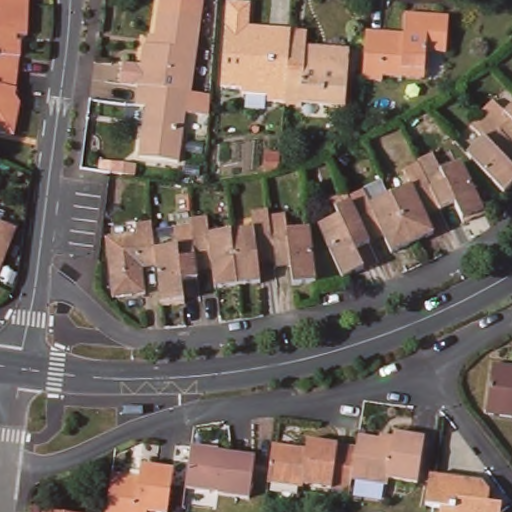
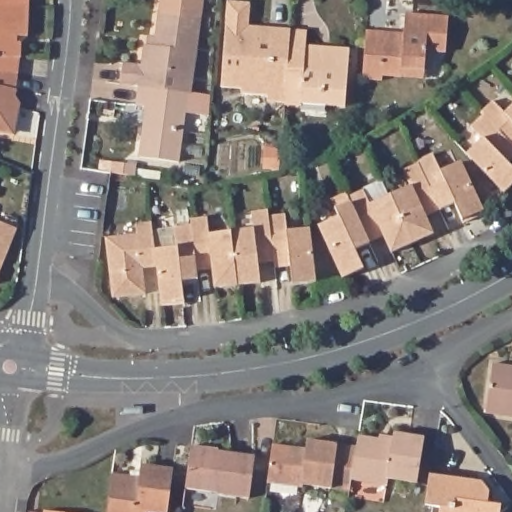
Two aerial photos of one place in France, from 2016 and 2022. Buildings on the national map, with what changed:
unchanged [(0,1),(0,0),(27,0),(27,2),(0,1)]
unchanged [(140,66),(142,45),(143,45),(147,46),(148,35),(154,36),(160,0),(196,0),(203,1),(202,1),(189,94),(187,94),(179,93),(148,88),(137,87),(117,84),(121,63),(140,66)]
unchanged [(25,34),(14,33),(13,39),(19,40),(17,55),(16,70),(0,68),(0,1),(27,2),(25,34)]
unchanged [(400,78),(380,77),(379,81),(360,79),(364,30),(384,32),(383,36),(403,39),(405,14),(448,18),(445,55),(424,53),(422,72),(422,80),(400,78)]
unchanged [(224,24),(290,30),(284,98),(242,96),(242,90),(219,88),(224,24)]
unchanged [(284,98),(290,30),(307,31),(306,47),(347,50),(343,108),(300,104),(300,107),(283,107),(284,98)]
unchanged [(14,85),(11,100),(17,101),(10,132),(0,130),(0,68),(16,70),(14,85)]
unchanged [(176,165),(137,159),(145,107),(135,105),(137,87),(148,88),(179,93),(187,94),(176,165)]
unchanged [(512,166),(512,184),(506,191),(465,153),(480,137),(471,128),(482,115),(481,113),(492,101),(505,112),(512,104),(512,159),(509,162),(512,166)]
unchanged [(371,243),(356,249),(363,269),(343,278),(319,225),(339,215),(331,199),(347,192),(348,195),(365,189),(372,203),(410,185),(403,169),(418,163),(417,160),(432,153),(440,171),(461,161),(483,211),(463,222),(455,203),(441,209),(425,216),(435,234),(392,253),(385,236),(370,242),(371,243)]
unchanged [(180,283),(182,305),(160,307),(155,269),(140,271),(144,296),(111,300),(104,241),(136,237),(135,227),(151,225),(153,250),(174,248),(173,228),(190,228),(189,220),(206,219),(209,236),(252,231),(250,213),(266,211),(267,217),(282,215),(285,232),(307,230),(312,283),(289,286),(287,267),(272,268),(271,262),(256,263),(259,285),(213,289),(211,269),(195,270),(196,281),(180,283)]
unchanged [(0,268),(0,225),(15,231),(0,268)]
unchanged [(490,364),(512,367),(512,417),(482,412),(490,364)]
unchanged [(356,439),(390,444),(392,435),(422,440),(415,485),(386,480),(385,488),(350,481),(356,439)]
unchanged [(271,447),(303,453),(304,442),(335,448),(330,491),(301,487),(265,485),(271,447)]
unchanged [(190,449),(217,452),(217,454),(254,459),(247,500),(216,495),(216,494),(184,489),(190,449)]
unchanged [(110,481),(138,485),(140,472),(172,477),(167,512),(105,512),(110,481)]
unchanged [(427,477),(483,485),(491,495),(489,505),(500,507),(499,512),(437,512),(437,509),(423,506),(427,477)]

